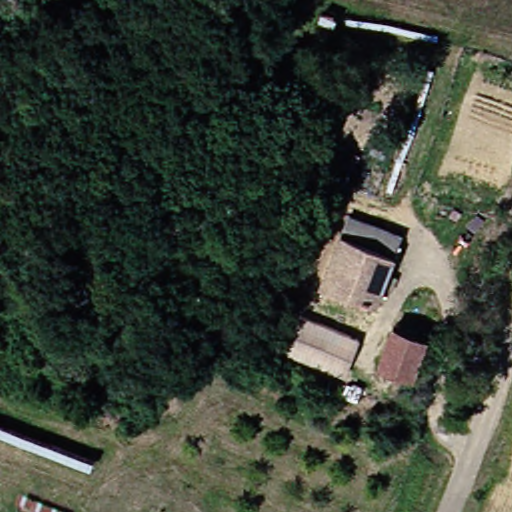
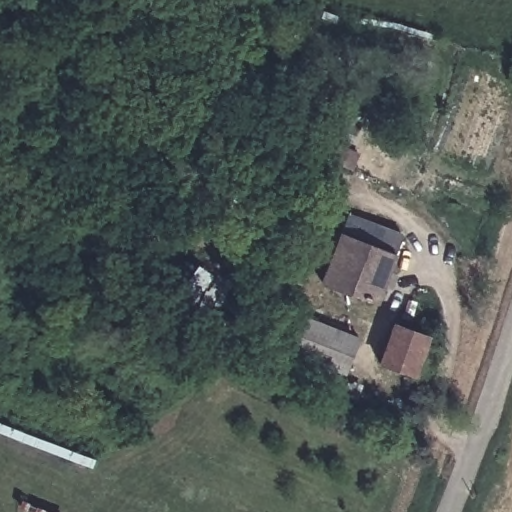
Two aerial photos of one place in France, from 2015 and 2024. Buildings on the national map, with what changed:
unchanged [(328,177),(316,173),(326,143),(338,146),(328,177)]
unchanged [(338,216),(392,238),(362,306),(310,285),(338,216)]
unchanged [(330,376),(274,353),(288,319),(343,343),(330,376)]
unchanged [(404,371),(372,362),(383,323),(414,332),(404,371)]

